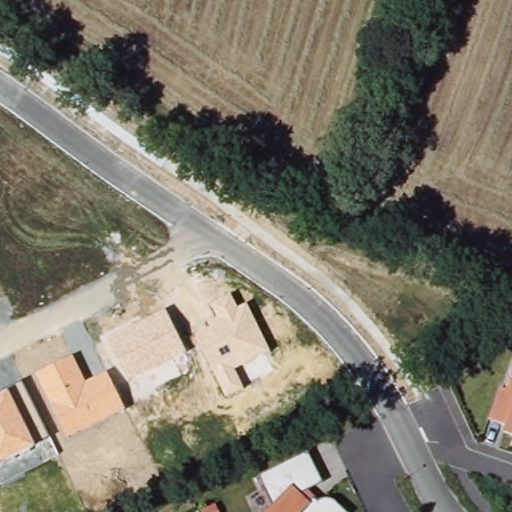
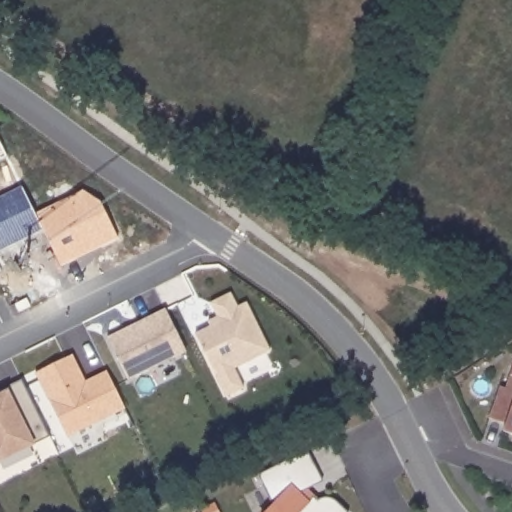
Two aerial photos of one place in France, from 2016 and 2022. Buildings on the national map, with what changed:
new [(62,267),(37,214),(84,191),(101,203),(118,239),(62,267)]
unchanged [(198,335),(210,331),(207,322),(218,317),(211,303),(231,294),(238,309),(248,303),(270,353),(236,370),(245,389),(226,398),(198,335)]
unchanged [(108,341),(168,311),(188,351),(129,381),(108,341)]
unchanged [(34,375),(73,356),(85,383),(107,373),(125,410),(67,438),(34,375)]
unchanged [(9,390),(23,382),(49,437),(34,445),(0,462),(0,394),(9,390)]
unchanged [(512,382),(512,432),(504,430),(505,421),(489,415),(498,385),(511,385),(512,382)]
unchanged [(314,458),(325,478),(303,493),(311,502),(331,498),(344,512),(267,512),(274,502),(267,479),(314,458)]

